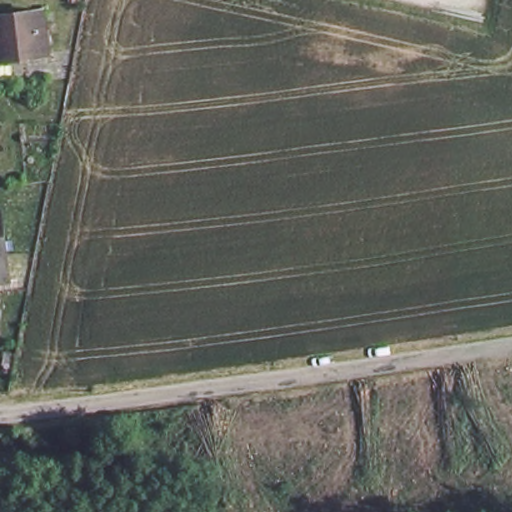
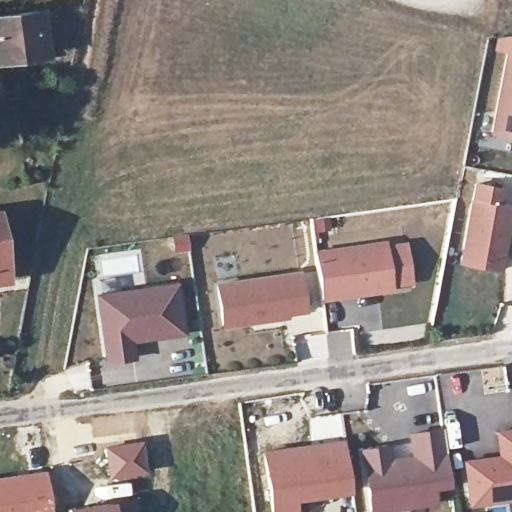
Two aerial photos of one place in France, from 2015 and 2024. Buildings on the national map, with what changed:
unchanged [(40,11),(43,54),(0,60),(0,17),(40,11)]
new [(512,143),(490,139),(505,54),(512,56),(512,143)]
new [(504,207),(512,209),(512,228),(503,277),(460,269),(475,185),(506,190),(504,207)]
new [(388,242),(389,247),(409,245),(413,287),(396,289),(396,294),(322,305),(315,253),(388,242)]
unchanged [(4,275),(0,275),(0,247),(4,275)]
new [(303,272),(309,317),(223,331),(216,285),(303,272)]
new [(180,282),(186,338),(135,346),(137,363),(107,367),(94,295),(180,282)]
new [(333,498),(332,494),(296,501),(299,512),(270,512),(261,449),(310,441),(307,416),(342,411),(345,436),(355,495),(333,498)]
new [(362,450),(392,447),(393,461),(412,459),(409,434),(444,431),(446,457),(450,456),(453,493),(437,496),(438,510),(423,512),(370,512),(362,450)]
new [(497,432),(512,431),(512,507),(470,512),(464,463),(500,459),(497,432)]
new [(144,439),(149,473),(107,479),(102,445),(144,439)]
new [(47,468),(53,512),(0,512),(0,475),(47,468)]
new [(65,507),(115,499),(135,496),(138,512),(65,512),(65,507)]

